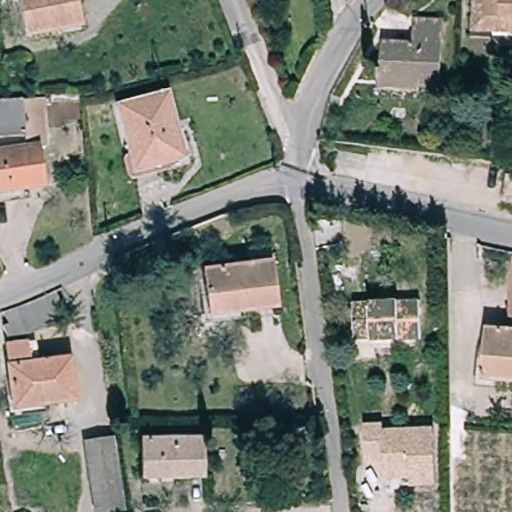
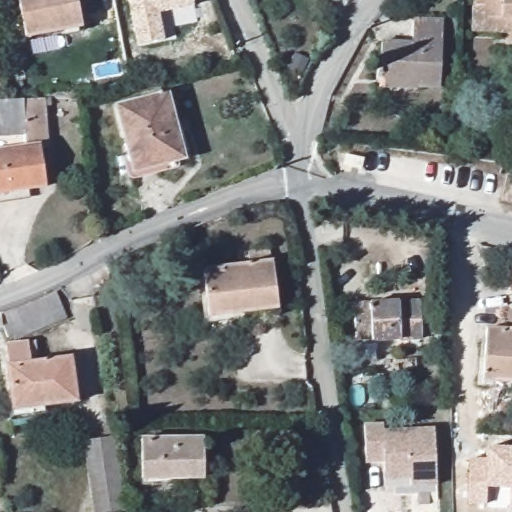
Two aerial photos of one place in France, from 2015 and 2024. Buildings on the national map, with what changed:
unchanged [(68,29),(25,38),(16,0),(75,0),(79,19),(81,26),(68,29)]
new [(159,14),(164,40),(137,45),(128,0),(193,0),(194,5),(159,14)]
unchanged [(476,0),(512,0),(512,36),(510,36),(473,32),(476,0)]
unchanged [(382,87),(384,74),(387,42),(416,43),(419,17),(449,20),(442,86),(413,83),(412,89),(382,87)]
unchanged [(189,155),(183,157),(174,159),(129,169),(113,100),(146,91),(144,84),(156,81),(158,89),(165,87),(175,123),(181,122),(189,155)]
unchanged [(23,149),(23,135),(21,104),(53,103),(53,109),(46,110),(48,149),(43,150),(42,147),(23,149)]
unchanged [(23,135),(0,137),(0,105),(21,104),(23,135)]
unchanged [(0,195),(0,154),(23,149),(42,147),(43,150),(48,186),(0,195)]
unchanged [(501,184),(512,185),(512,214),(498,212),(501,184)]
unchanged [(198,283),(204,282),(203,270),(272,263),(278,308),(209,316),(202,316),(198,283)]
unchanged [(11,342),(0,314),(53,294),(65,321),(11,342)]
unchanged [(416,341),(369,343),(369,336),(351,336),(351,307),(416,306),(416,341)]
unchanged [(486,379),(489,327),(512,327),(512,381),(486,379)]
unchanged [(0,330),(1,333),(0,333),(0,330)]
unchanged [(8,422),(3,379),(10,378),(6,349),(39,345),(41,366),(70,363),(75,404),(44,408),(45,418),(8,422)]
unchanged [(412,479),(385,479),(384,462),(366,464),(362,422),(382,423),(383,430),(433,428),(437,486),(411,489),(412,479)]
unchanged [(204,471),(142,475),(140,440),(202,436),(204,471)]
unchanged [(109,512),(99,512),(88,442),(113,437),(126,508),(109,512)]
new [(512,448),(512,505),(509,505),(509,489),(488,489),(486,505),(468,504),(470,460),(485,458),(485,447),(512,448)]

